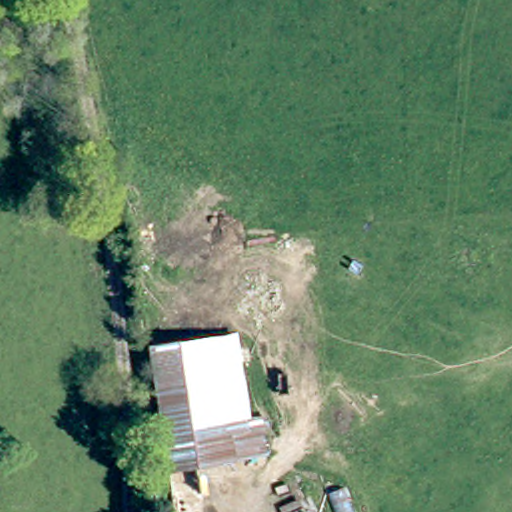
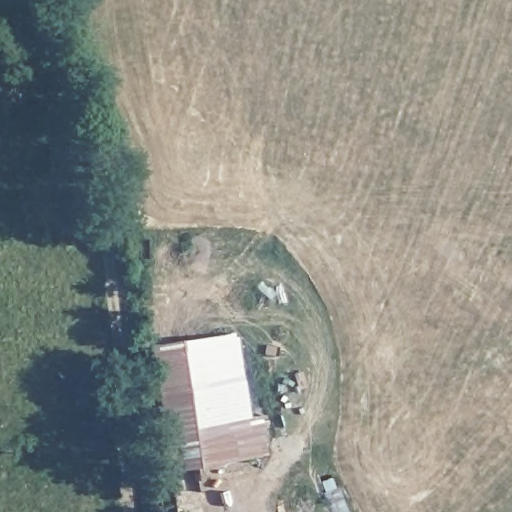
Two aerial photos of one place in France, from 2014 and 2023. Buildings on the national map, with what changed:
unchanged [(161,351),(234,345),(243,458),(168,462),(161,351)]

